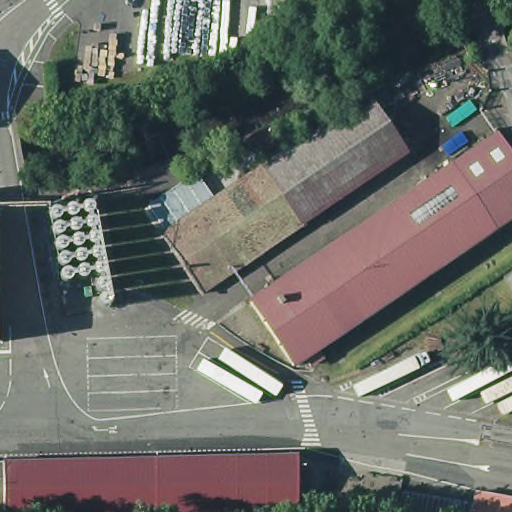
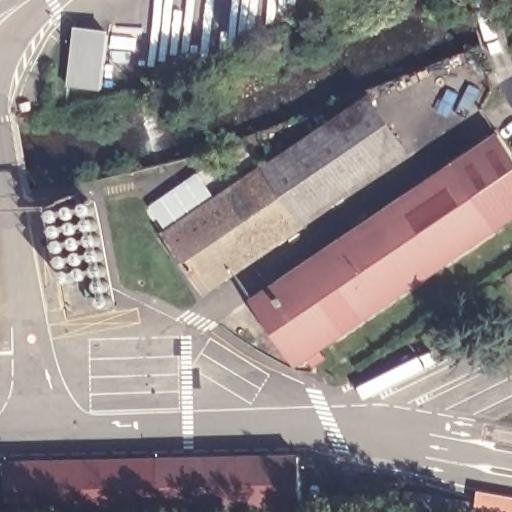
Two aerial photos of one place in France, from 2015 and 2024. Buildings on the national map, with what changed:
new [(104,31),(98,89),(64,87),(70,28),(104,31)]
unchanged [(371,100),(409,158),(306,228),(266,170),(371,100)]
unchanged [(504,136),(512,148),(512,222),(501,230),(459,166),(504,136)]
unchanged [(248,143),(266,170),(163,239),(144,212),(248,143)]
unchanged [(318,365),(313,358),(301,366),(259,302),(459,166),(501,230),(324,351),(329,358),(318,365)]
unchanged [(306,228),(202,298),(163,239),(266,170),(306,228)]
unchanged [(69,317),(49,209),(97,201),(117,308),(69,317)]
unchanged [(3,344),(0,345),(0,213),(1,213),(3,344)]
unchanged [(504,273),(512,267),(512,283),(504,273)]
unchanged [(138,483),(168,483),(167,461),(309,459),(309,509),(202,512),(138,512),(138,483)]
unchanged [(138,483),(138,512),(20,512),(19,465),(167,461),(168,483),(138,483)]
unchanged [(20,512),(0,512),(0,465),(19,465),(20,512)]
unchanged [(337,508),(341,478),(366,481),(367,475),(405,480),(401,512),(370,512),(337,508)]
unchanged [(486,501),(512,506),(512,512),(483,512),(486,501)]

